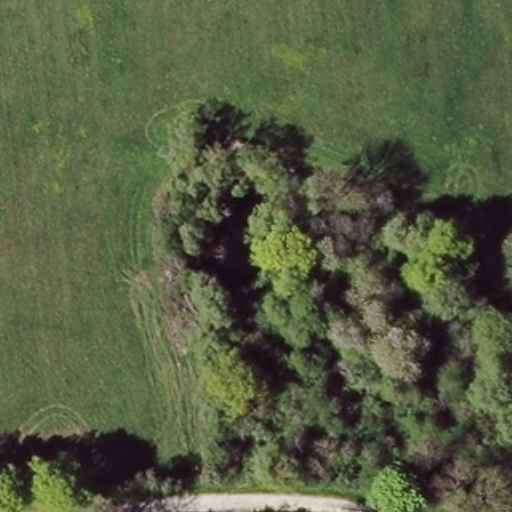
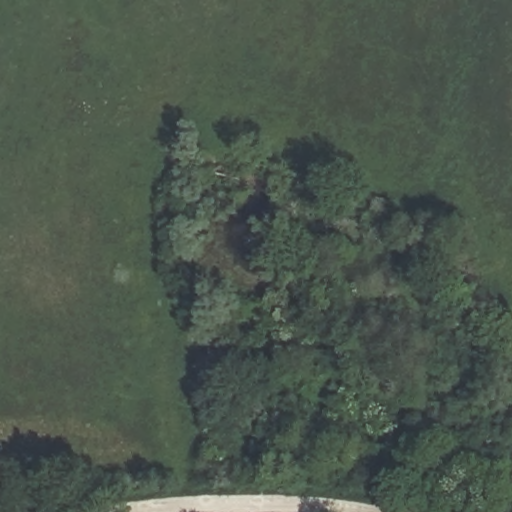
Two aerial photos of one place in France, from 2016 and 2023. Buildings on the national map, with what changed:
unchanged [(499,454),(490,482),(393,449),(403,420),(499,454)]

